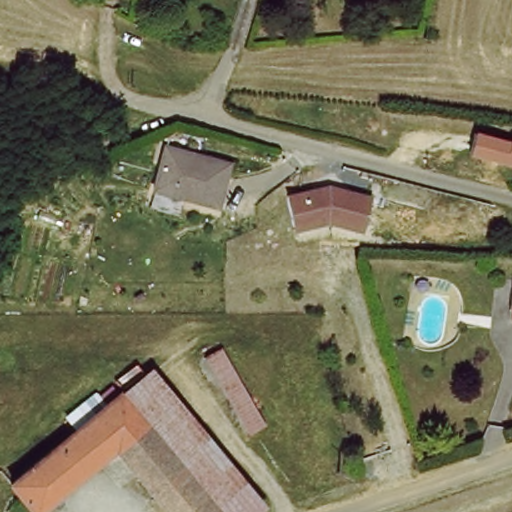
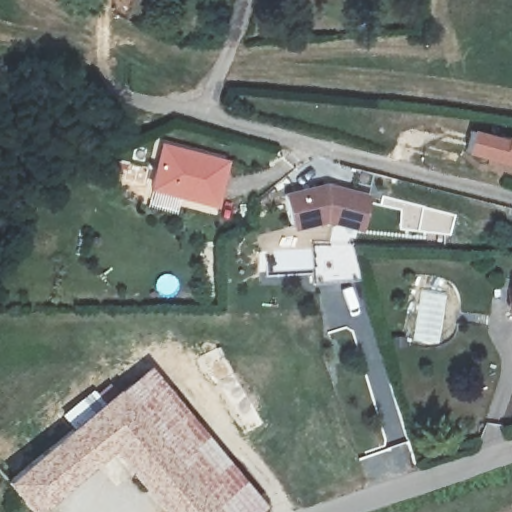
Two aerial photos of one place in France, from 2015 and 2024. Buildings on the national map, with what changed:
unchanged [(469,154),(474,130),(508,140),(508,136),(512,138),(512,164),(469,154)]
unchanged [(215,200),(150,188),(158,147),(223,160),(215,200)]
unchanged [(322,184),(365,194),(364,195),(359,219),(336,214),(290,226),(282,195),(281,194),(322,184)]
new [(313,245),(352,244),(353,261),(357,261),(358,282),(315,283),(314,271),(273,272),(272,252),(314,251),(313,245)]
unchanged [(512,284),(512,321),(507,320),(512,284)]
unchanged [(225,339),(271,422),(248,435),(200,351),(225,339)]
unchanged [(261,501),(249,512),(213,512),(114,391),(148,365),(261,501)]
unchanged [(213,512),(166,512),(111,449),(84,416),(114,391),(213,512)]
unchanged [(84,416),(111,449),(32,512),(30,512),(26,508),(21,512),(14,512),(0,494),(0,470),(7,478),(84,416)]

